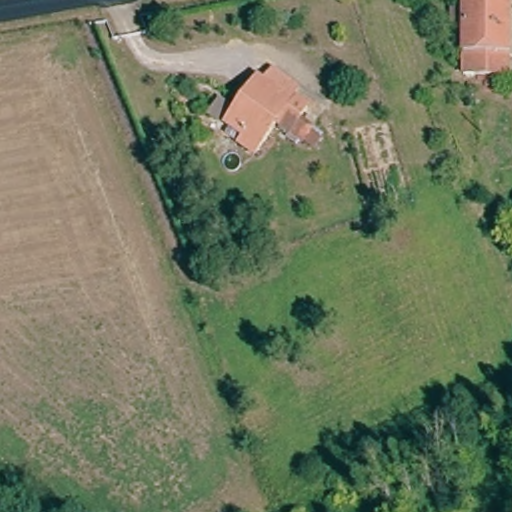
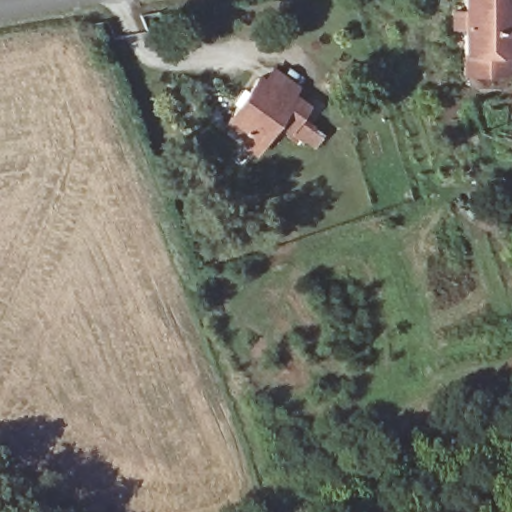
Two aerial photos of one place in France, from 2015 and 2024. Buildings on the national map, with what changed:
unchanged [(463,62),(463,56),(465,0),(512,0),(508,56),(506,75),(463,75),(463,62)]
unchanged [(292,105),(298,96),(314,109),(292,140),(278,130),(256,162),(239,150),(245,142),(225,127),(236,110),(246,96),(258,81),(292,105)]

